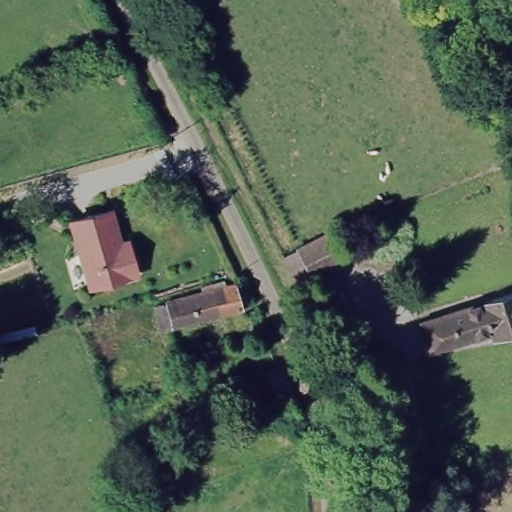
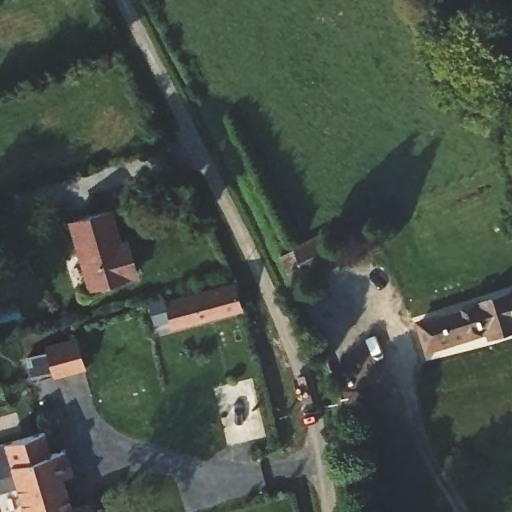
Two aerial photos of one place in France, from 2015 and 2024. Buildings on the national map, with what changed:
unchanged [(90,286),(70,221),(109,210),(119,242),(125,240),(128,250),(135,273),(90,286)]
unchanged [(305,269),(308,275),(292,282),(290,277),(277,251),(324,227),(337,253),(305,269)]
unchanged [(155,306),(167,303),(167,302),(203,293),(202,286),(223,280),(225,287),(235,284),(242,309),(173,327),(160,330),(155,306)]
unchanged [(490,331),(430,350),(420,322),(512,292),(512,332),(492,338),(490,331)]
new [(75,338),(83,367),(55,375),(47,346),(75,338)]
new [(48,352),(53,369),(31,376),(27,358),(48,352)]
demolished [(233,424),(229,414),(275,399),(283,396),(288,408),(233,424)]
new [(0,491),(0,444),(43,432),(50,453),(65,449),(72,473),(62,476),(72,509),(90,503),(92,512),(24,512),(17,486),(0,491)]

